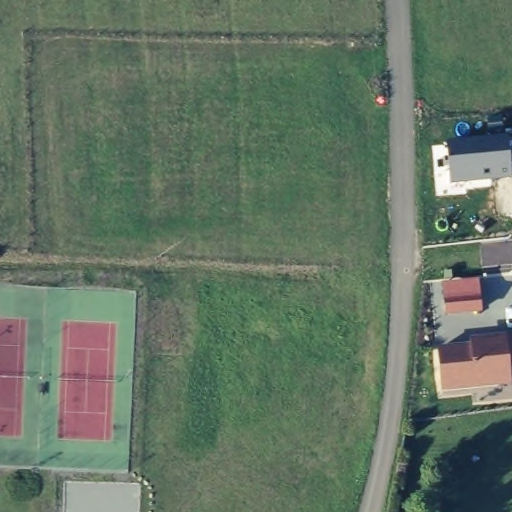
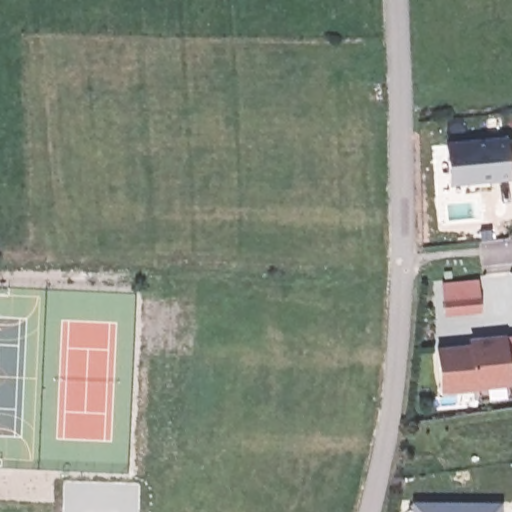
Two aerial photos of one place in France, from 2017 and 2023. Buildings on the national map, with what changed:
unchanged [(444,143),(509,137),(512,172),(512,178),(449,186),(444,143)]
unchanged [(441,282),(480,279),(483,312),(444,315),(441,282)]
unchanged [(511,385),(443,393),(437,348),(469,344),(468,337),(506,334),(511,385)]
new [(499,503),(499,512),(414,512),(414,503),(499,503)]

